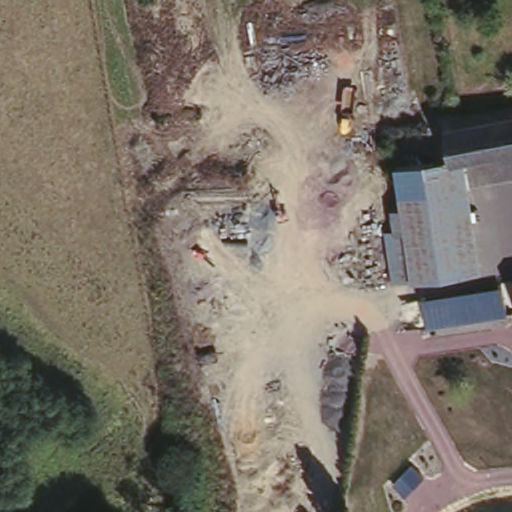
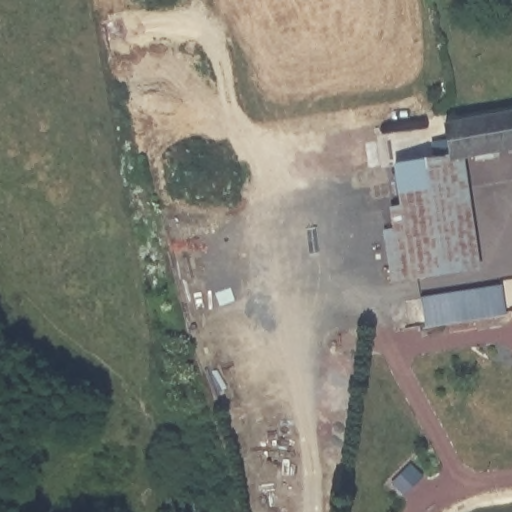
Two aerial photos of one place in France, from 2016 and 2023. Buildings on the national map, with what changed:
unchanged [(446,164),(444,151),(440,132),(464,127),(512,116),(512,149),(446,164)]
unchanged [(401,201),(397,160),(444,151),(446,164),(463,263),(423,270),(413,272),(401,201)]
unchanged [(413,272),(395,276),(387,224),(392,223),(390,202),(401,201),(413,272)]
unchanged [(500,289),(505,320),(427,334),(422,302),(500,289)]

